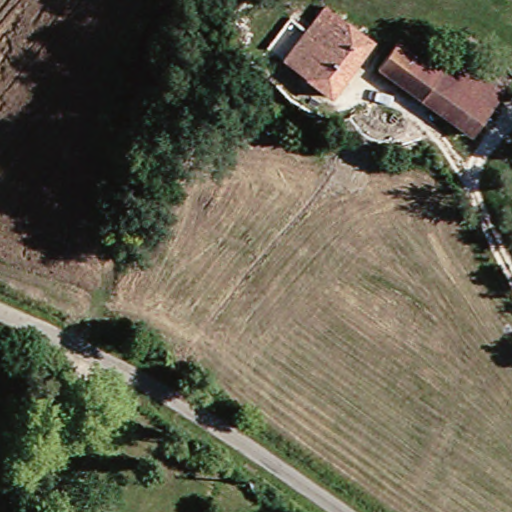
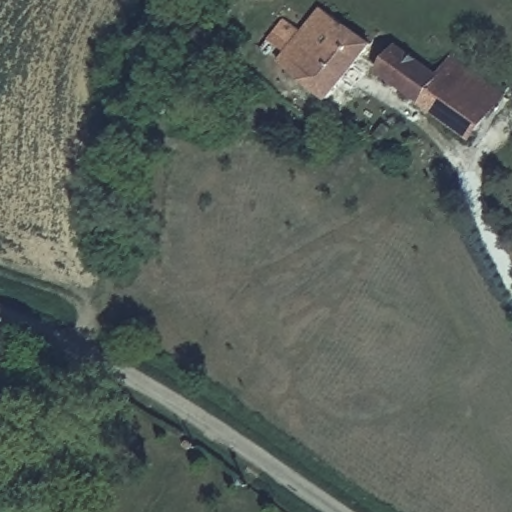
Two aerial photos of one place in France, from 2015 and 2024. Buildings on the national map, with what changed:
unchanged [(302,13),(320,27),(332,11),(376,44),(337,96),(275,49),(302,13)]
unchanged [(386,75),(401,51),(446,77),(430,103),(386,75)]
unchanged [(458,59),(505,87),(477,132),(430,103),(446,77),(458,59)]

